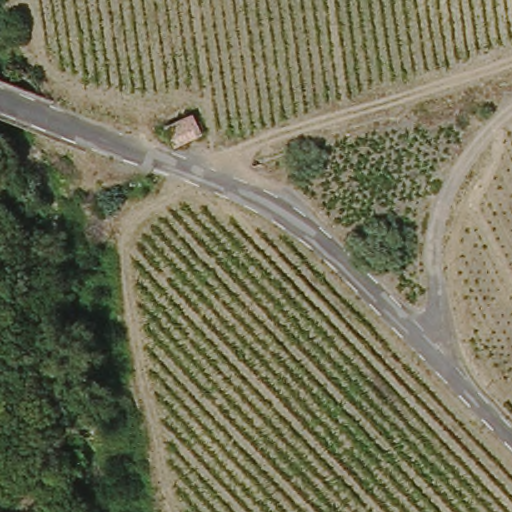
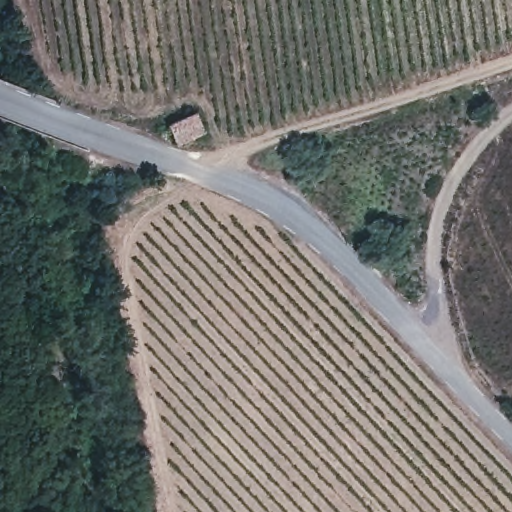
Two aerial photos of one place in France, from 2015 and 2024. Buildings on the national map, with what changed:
unchanged [(205,130),(187,139),(183,141),(181,137),(176,127),(196,117),(205,130)]

